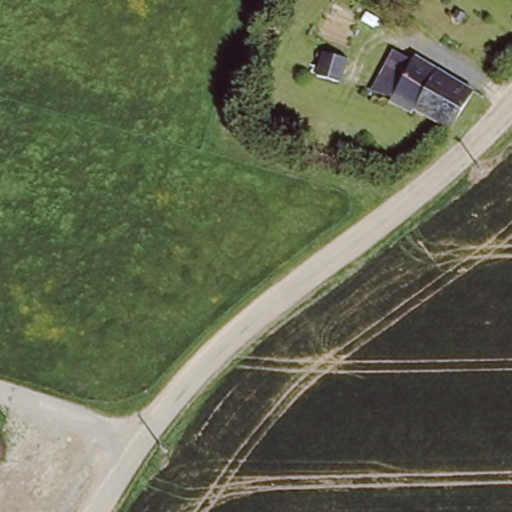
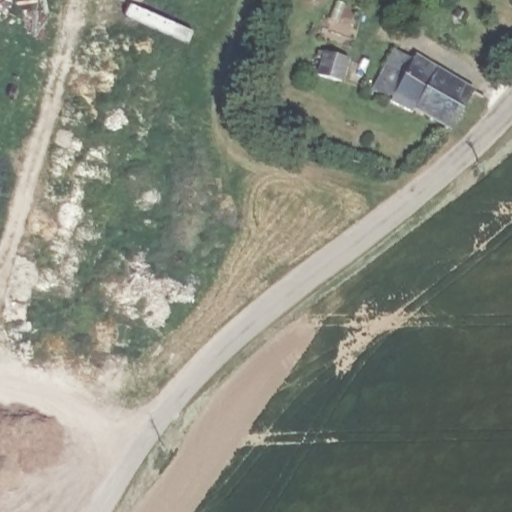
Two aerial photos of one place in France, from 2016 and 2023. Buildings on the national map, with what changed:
unchanged [(452,105),(443,126),(390,100),(375,93),(390,61),(405,68),(410,61),(474,93),(460,108),(452,105)]

